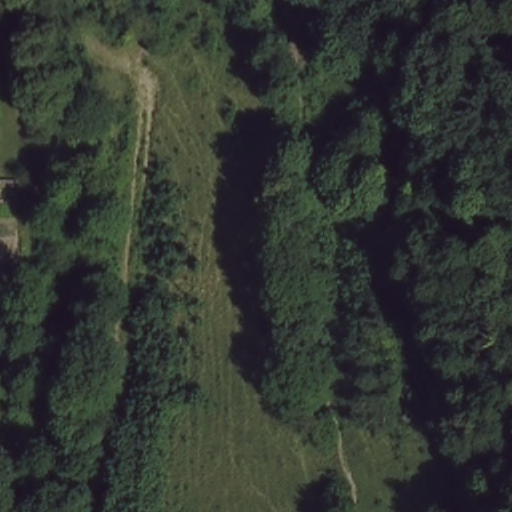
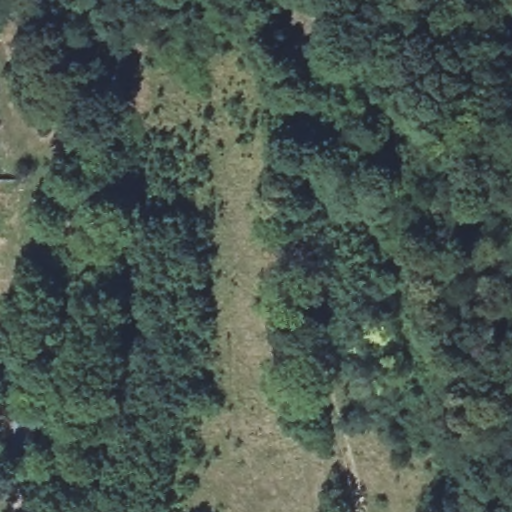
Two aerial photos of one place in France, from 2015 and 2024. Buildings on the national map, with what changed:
unchanged [(16,180),(0,179),(0,169),(17,169),(16,180)]

